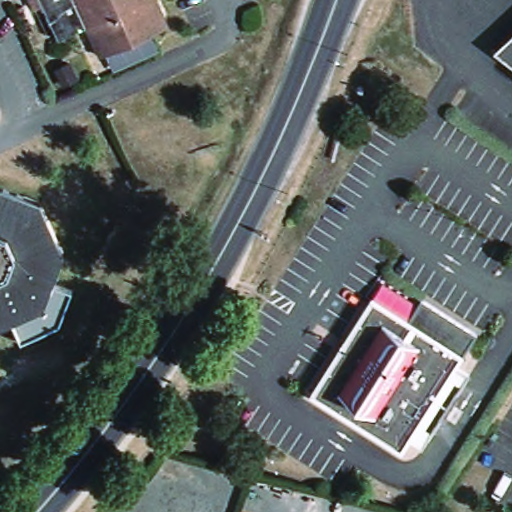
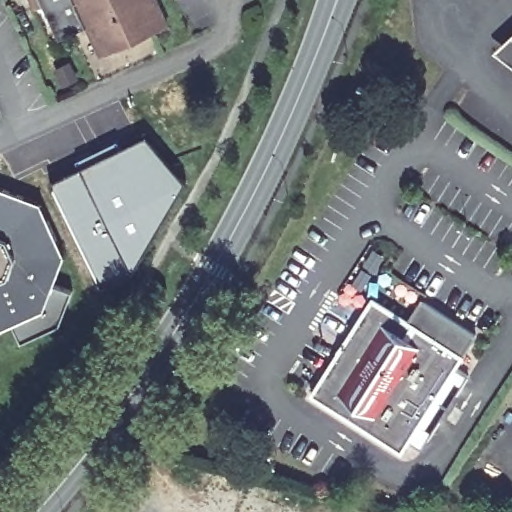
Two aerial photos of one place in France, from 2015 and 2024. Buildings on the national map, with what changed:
unchanged [(86,57),(76,35),(71,38),(57,44),(42,10),(35,13),(29,0),(154,0),(167,29),(98,60),(91,64),(90,64),(86,57)]
unchanged [(68,87),(56,93),(49,76),(61,71),(64,78),(68,87)]
new [(80,166),(76,159),(118,138),(123,145),(146,134),(186,182),(132,274),(124,280),(104,292),(86,259),(50,181),(80,166)]
unchanged [(44,209),(69,264),(54,299),(50,298),(43,314),(0,331),(0,191),(44,209)]
unchanged [(373,302),(409,324),(422,303),(477,338),(457,369),(470,378),(424,452),(410,444),(403,454),(313,397),(373,302)]

